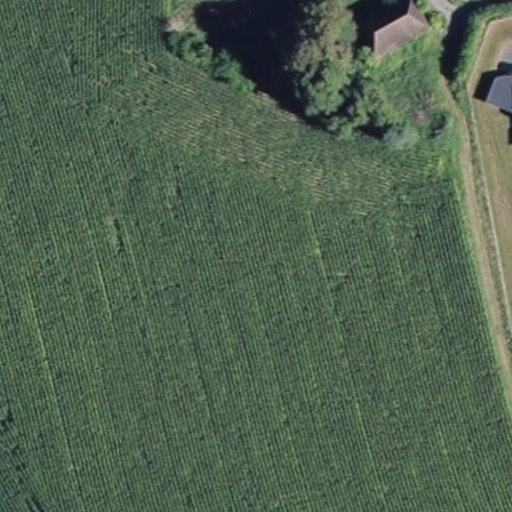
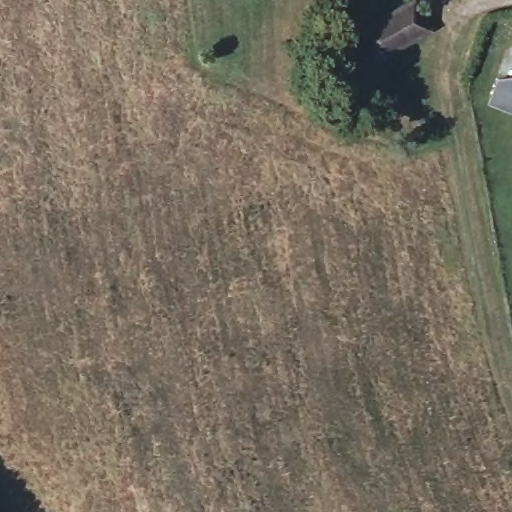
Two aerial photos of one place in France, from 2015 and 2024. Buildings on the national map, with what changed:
unchanged [(413,0),(430,28),(375,64),(355,28),(403,0),(413,0)]
unchanged [(498,79),(512,77),(512,114),(488,105),(498,79)]

